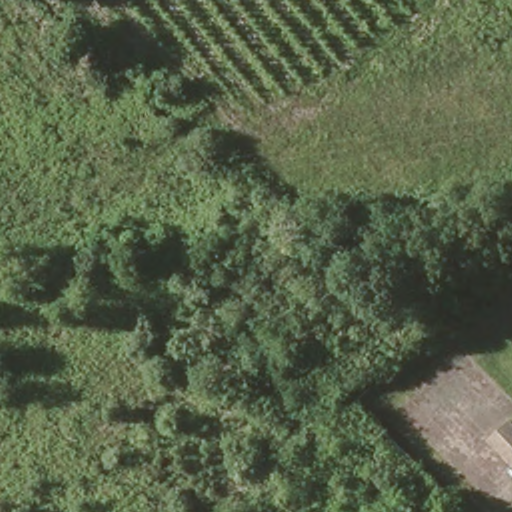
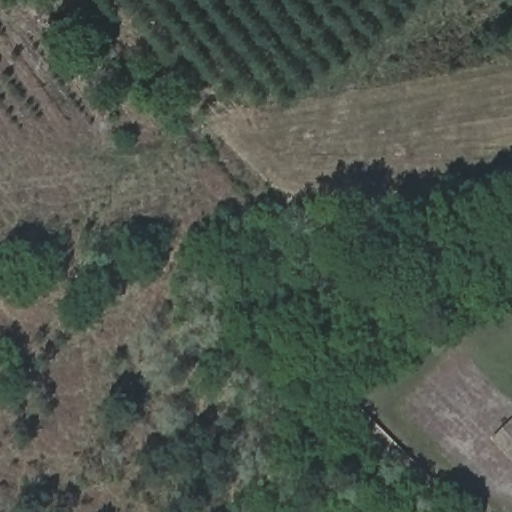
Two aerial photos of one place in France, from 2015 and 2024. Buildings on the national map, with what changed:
unchanged [(512,435),(512,456),(501,445),(512,435)]

